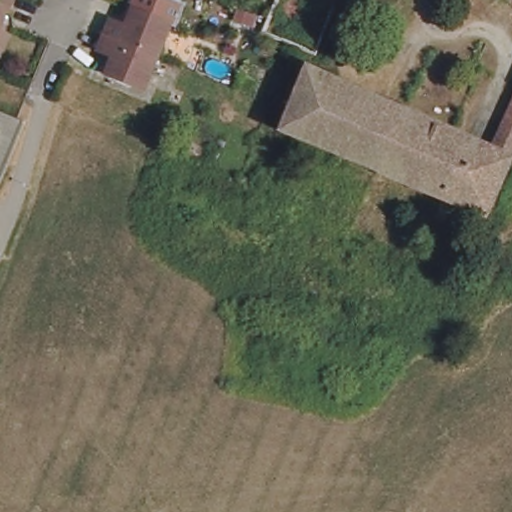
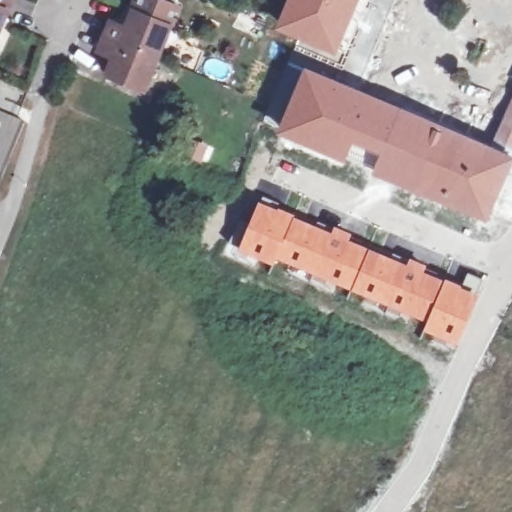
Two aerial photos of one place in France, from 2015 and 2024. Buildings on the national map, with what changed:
unchanged [(0,0),(11,0),(0,28),(0,0)]
new [(105,76),(110,59),(95,51),(110,18),(124,23),(133,0),(166,0),(182,6),(145,93),(105,76)]
new [(270,16),(278,0),(340,0),(312,62),(297,55),(260,38),(270,16)]
demolished [(112,21),(127,27),(134,9),(172,24),(160,54),(129,43),(107,34),(112,21)]
demolished [(147,88),(107,73),(114,57),(100,51),(107,34),(129,43),(160,54),(147,88)]
unchanged [(400,178),(380,170),(279,127),(305,69),(405,117),(430,128),(494,153),(512,115),(512,167),(491,213),(400,178)]
unchanged [(14,149),(0,144),(0,110),(25,120),(14,149)]
new [(260,198),(295,213),(276,258),(274,264),(238,249),(260,198)]
new [(295,213),(332,229),(334,224),(352,232),(350,238),(369,246),(351,289),(276,258),(295,213)]
new [(369,246),(407,261),(409,256),(428,263),(425,270),(445,277),(427,321),(351,289),(369,246)]
new [(427,321),(445,277),(462,284),(467,272),(482,278),(457,344),(423,329),(427,321)]

